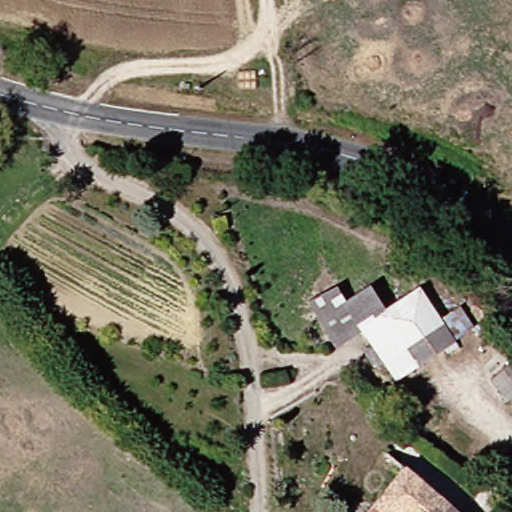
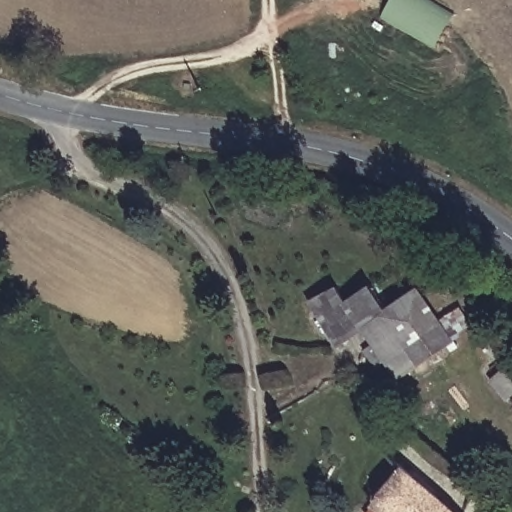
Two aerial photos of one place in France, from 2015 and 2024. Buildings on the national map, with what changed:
new [(451,14),(434,47),(382,19),(393,0),(427,0),(451,14)]
unchanged [(390,307),(420,288),(455,346),(399,378),(390,364),(377,368),(365,348),(375,338),(367,325),(345,340),(337,345),(307,301),(335,282),(346,300),(374,282),(390,307)]
unchanged [(466,306),(477,325),(457,336),(445,316),(466,306)]
unchanged [(490,380),(512,362),(512,398),(505,403),(490,380)]
unchanged [(452,512),(378,512),(415,476),(452,512)]

